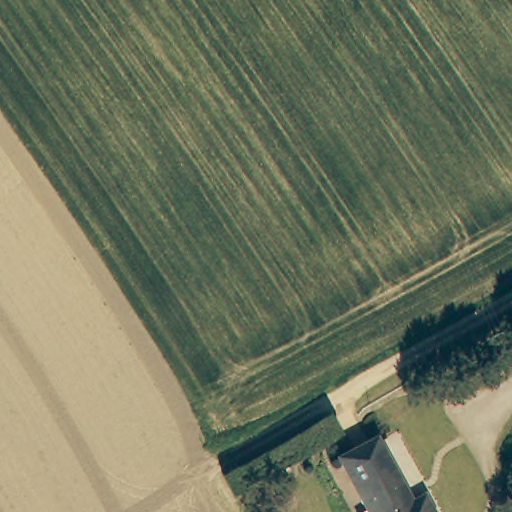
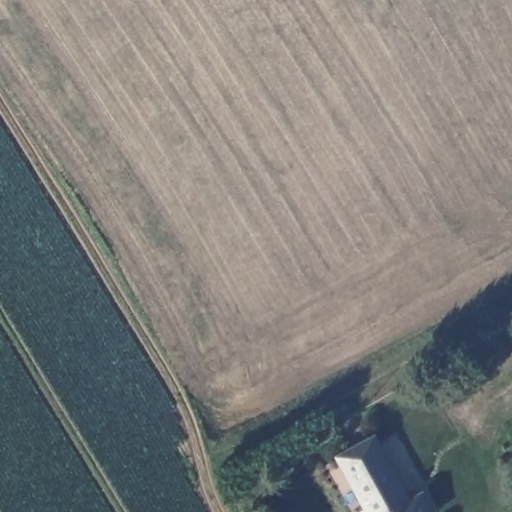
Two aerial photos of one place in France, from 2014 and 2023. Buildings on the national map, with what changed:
unchanged [(415,500),(427,492),(438,512),(373,512),(342,457),(378,438),(415,500)]

